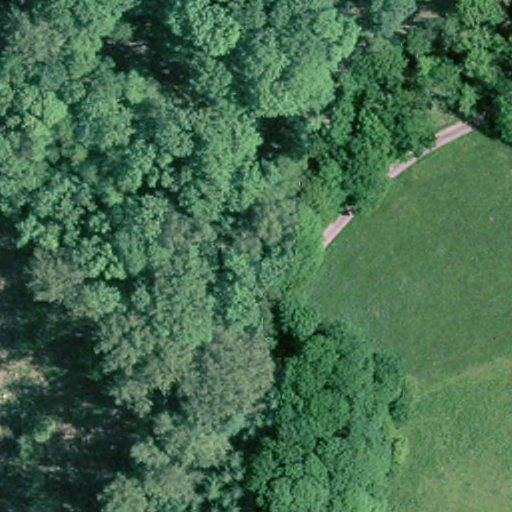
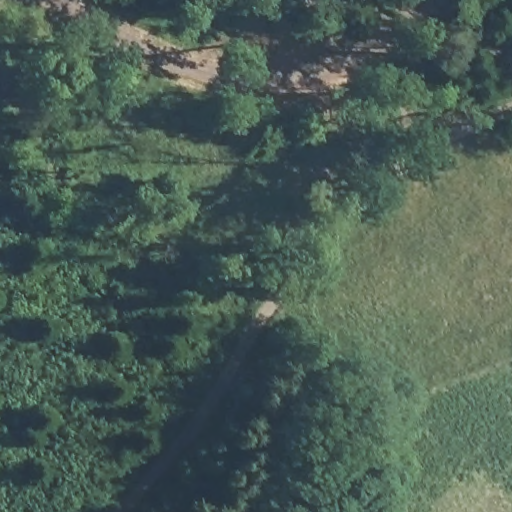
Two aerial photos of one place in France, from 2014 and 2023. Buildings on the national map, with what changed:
[]

